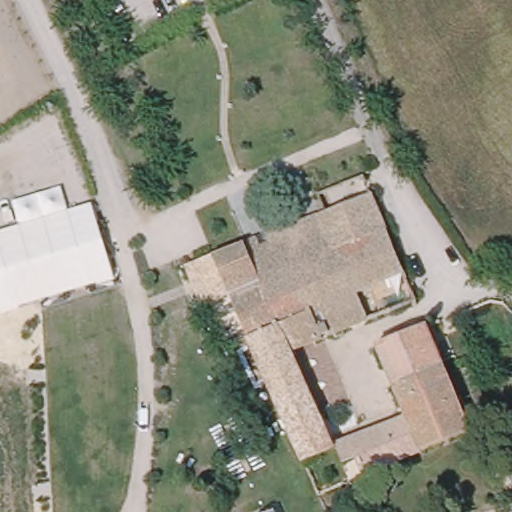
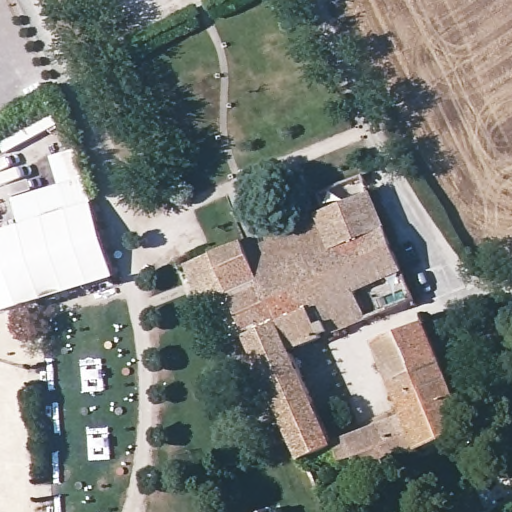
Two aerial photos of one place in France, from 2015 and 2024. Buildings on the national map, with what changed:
unchanged [(315,195),(358,177),(373,195),(324,212),(315,195)]
unchanged [(0,312),(0,231),(19,225),(13,201),(60,187),(82,182),(92,204),(115,280),(0,312)]
unchanged [(334,445),(404,416),(377,347),(428,327),(472,431),(365,477),(357,458),(342,465),(336,451),(302,465),(254,354),(212,253),(324,212),(373,195),(417,301),(293,351),(334,445)]
unchanged [(273,512),(267,512),(272,510),(273,512)]

